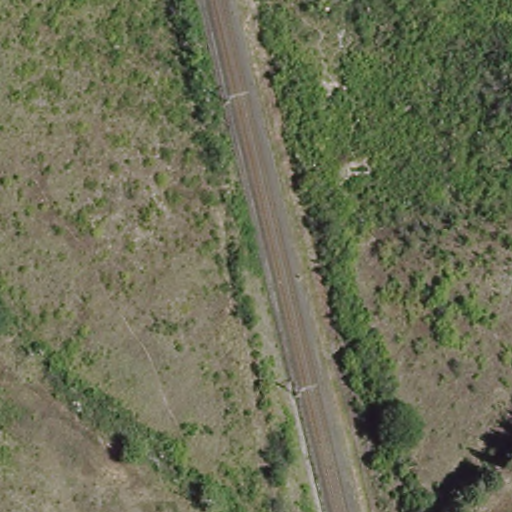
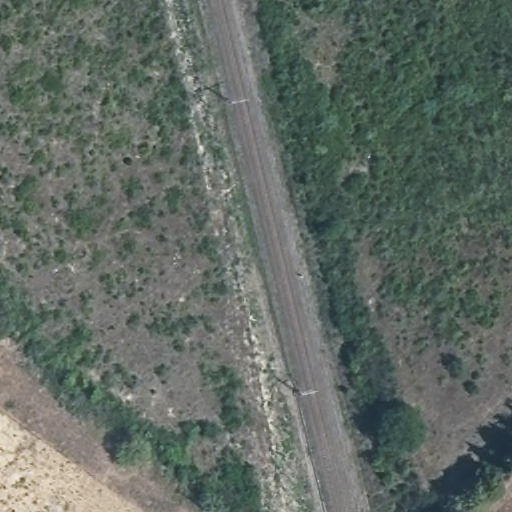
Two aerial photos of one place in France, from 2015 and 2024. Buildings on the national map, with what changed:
[]

